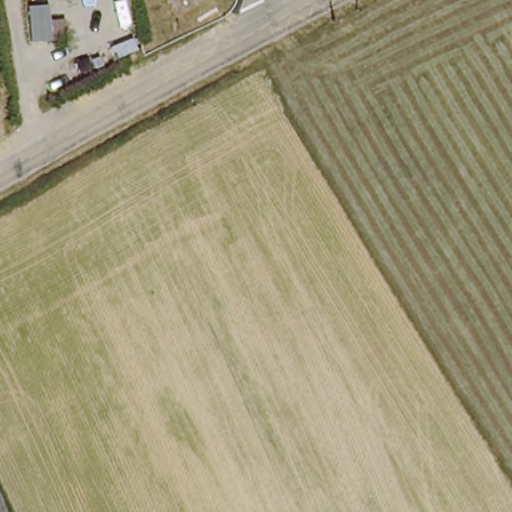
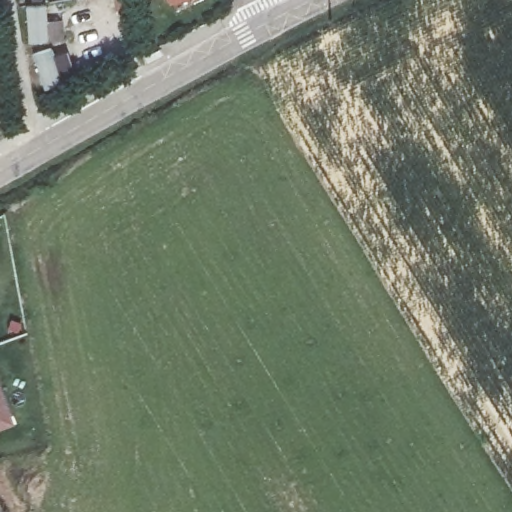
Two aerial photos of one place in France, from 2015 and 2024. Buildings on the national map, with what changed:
unchanged [(170,2),(169,0),(175,0),(170,2)]
new [(0,428),(0,390),(12,423),(0,428)]
unchanged [(2,512),(0,512),(0,508),(2,512)]

